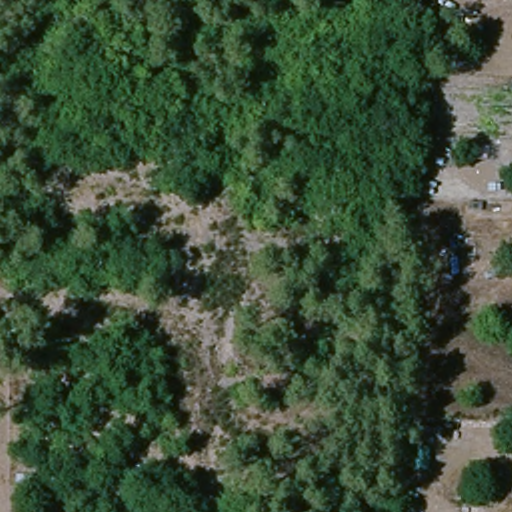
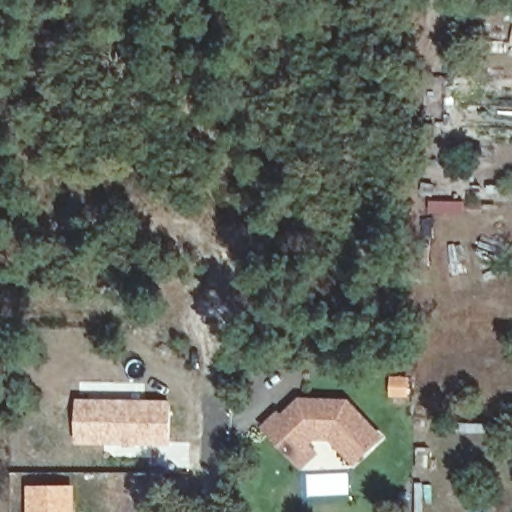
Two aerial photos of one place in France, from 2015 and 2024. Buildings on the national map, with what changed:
new [(355,465),(330,441),(316,442),(311,446),(319,455),(302,469),(262,427),(280,411),(282,414),(301,397),(351,400),(387,437),(355,465)]
new [(76,398),(172,400),(171,446),(129,447),(76,444),(76,398)]
new [(27,484),(76,484),(76,512),(26,512),(27,484)]

